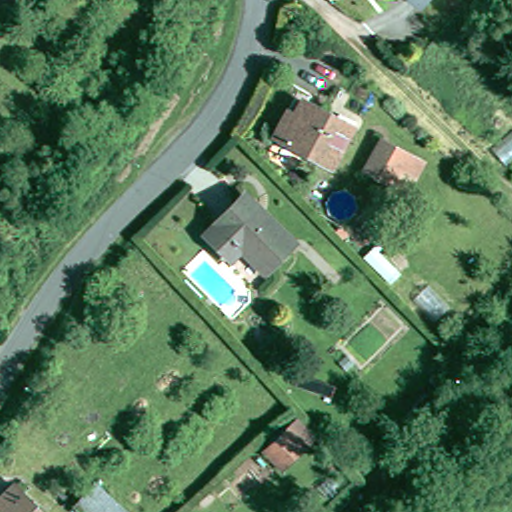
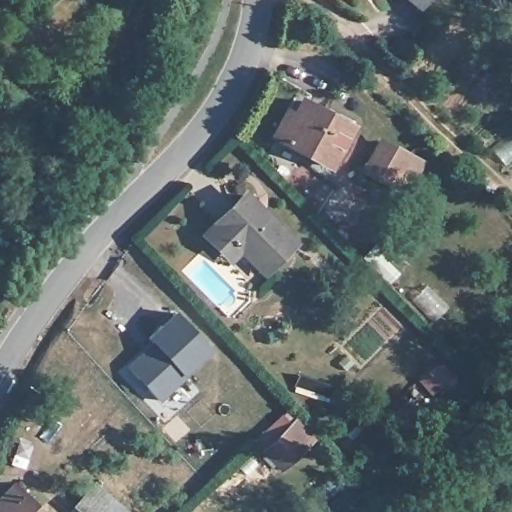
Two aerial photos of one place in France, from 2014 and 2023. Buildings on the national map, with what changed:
unchanged [(423,0),(428,0),(426,2),(423,0)]
unchanged [(287,115),(294,118),(302,102),(352,129),(331,167),(275,137),(287,115)]
unchanged [(381,144),(422,166),(408,192),(367,170),(381,144)]
unchanged [(230,250),(210,231),(245,197),(250,191),(267,209),(297,240),(270,267),(246,244),(235,255),(230,250)]
new [(127,364),(153,340),(149,337),(175,309),(215,349),(160,401),(127,364)]
unchanged [(265,451),(291,427),(299,421),(316,438),(309,446),(305,442),(279,467),(265,451)]
unchanged [(15,491),(21,485),(28,493),(22,498),(35,512),(0,512),(0,505),(15,491)]
unchanged [(95,485),(125,512),(79,512),(74,507),(95,485)]

